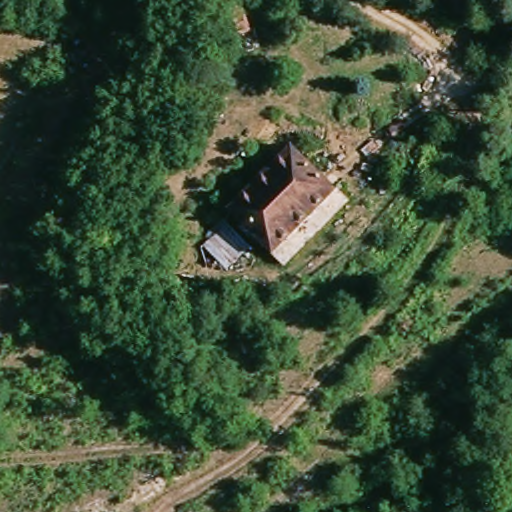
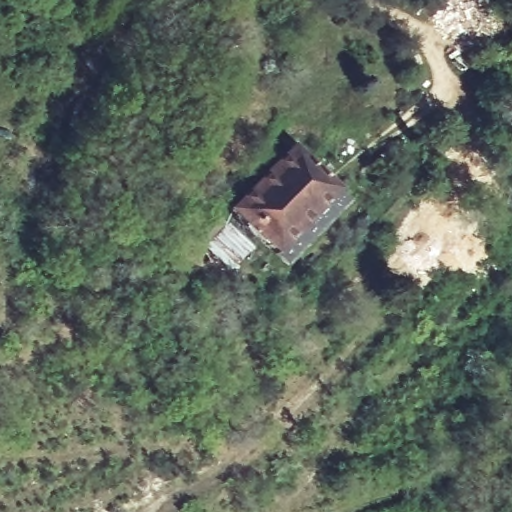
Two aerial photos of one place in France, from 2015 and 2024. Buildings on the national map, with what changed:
unchanged [(168,50),(219,58),(217,70),(197,69),(197,77),(165,72),(168,50)]
unchanged [(272,249),(225,202),(287,140),(337,189),(272,249)]
unchanged [(252,249),(228,271),(202,247),(227,222),(252,249)]

